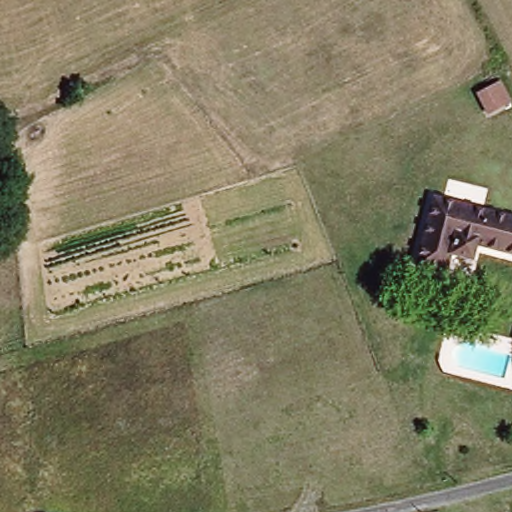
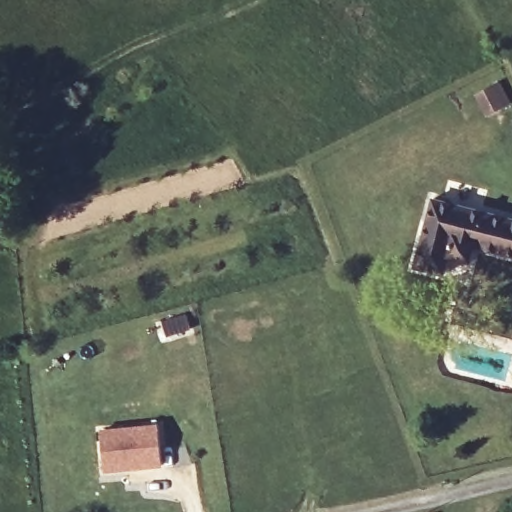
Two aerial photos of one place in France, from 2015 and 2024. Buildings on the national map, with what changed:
unchanged [(487,106),(503,100),(511,121),(495,128),(487,106)]
unchanged [(469,258),(445,250),(440,270),(412,261),(432,194),(512,217),(512,256),(472,244),(469,258)]
new [(157,422),(162,466),(101,472),(98,428),(157,422)]

